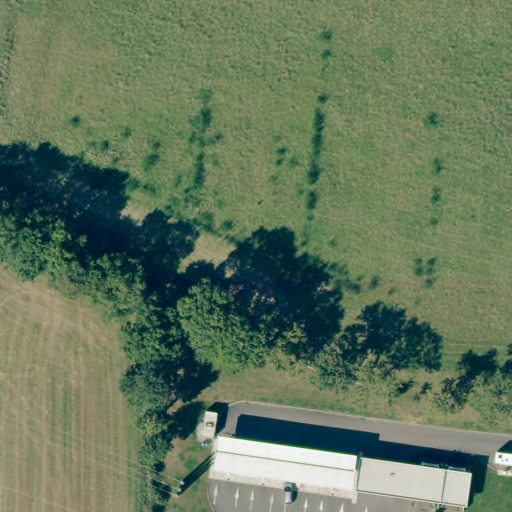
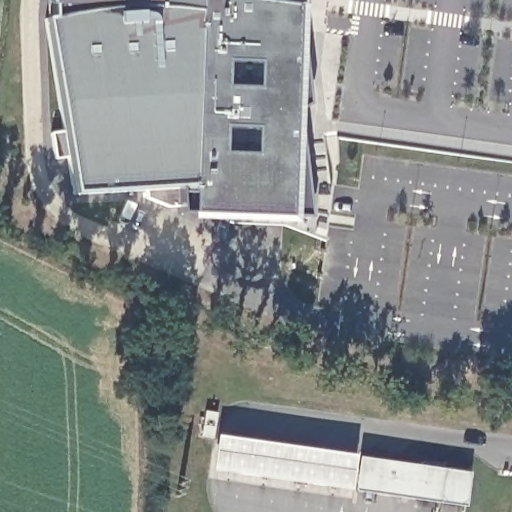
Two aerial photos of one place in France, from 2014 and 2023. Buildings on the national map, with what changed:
new [(298,33),(309,106),(300,110),(300,132),(308,219),(291,217),(181,214),(180,187),(74,195),(44,20),(52,17),(52,0),(300,0),(300,1),(298,33)]
unchanged [(357,455),(352,491),(212,471),(217,435),(357,455)]
unchanged [(466,507),(356,491),(361,457),(471,473),(466,507)]

